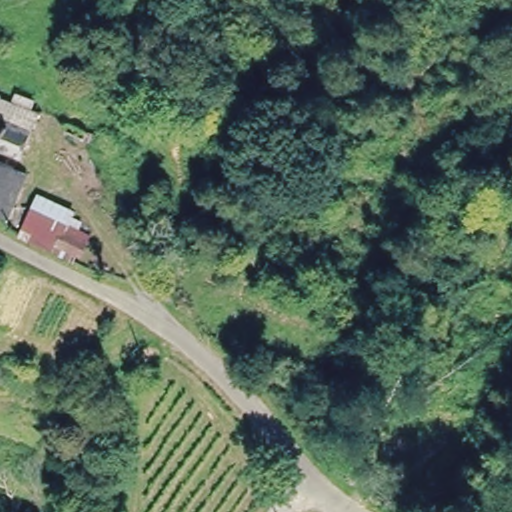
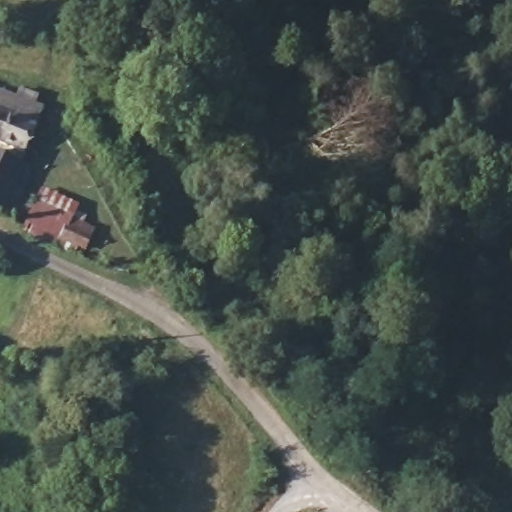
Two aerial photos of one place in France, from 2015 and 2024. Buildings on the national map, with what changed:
unchanged [(37,134),(0,117),(0,96),(43,119),(37,134)]
unchanged [(37,134),(26,157),(0,145),(0,117),(37,134)]
unchanged [(24,174),(5,216),(0,214),(0,163),(24,174)]
unchanged [(70,259),(18,234),(28,209),(36,193),(73,211),(66,228),(81,236),(70,259)]
unchanged [(238,293),(290,337),(270,366),(220,321),(238,293)]

